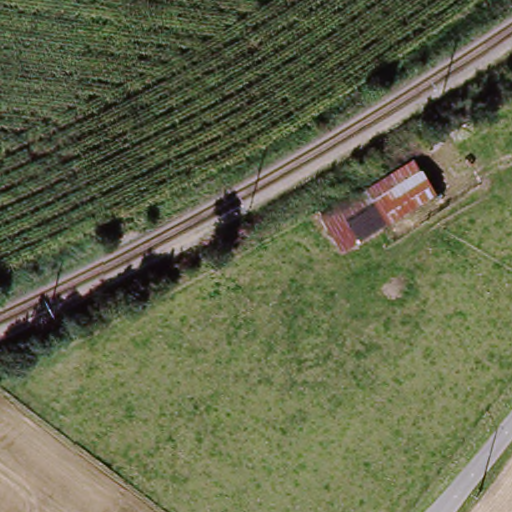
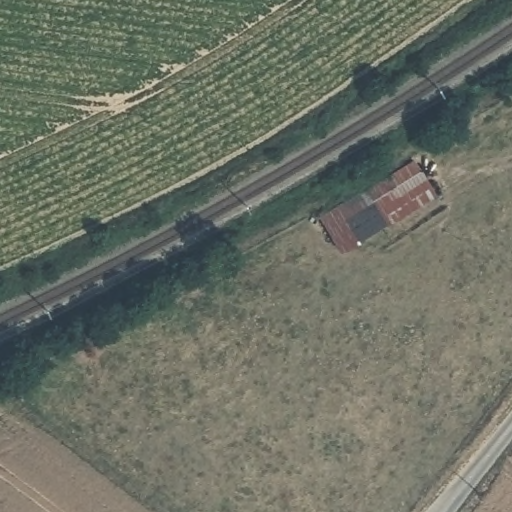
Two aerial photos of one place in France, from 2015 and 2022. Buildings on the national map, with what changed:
unchanged [(416,163),(429,198),(337,254),(314,218),(416,163)]

